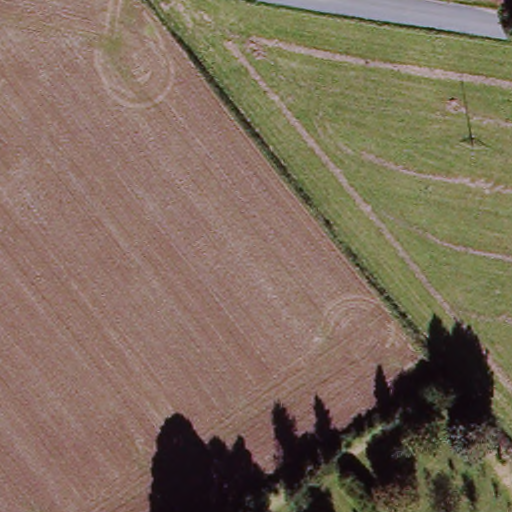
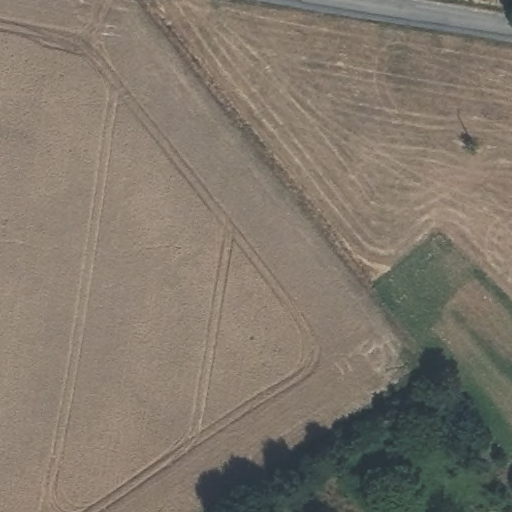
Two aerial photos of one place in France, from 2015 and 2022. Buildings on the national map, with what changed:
[]

